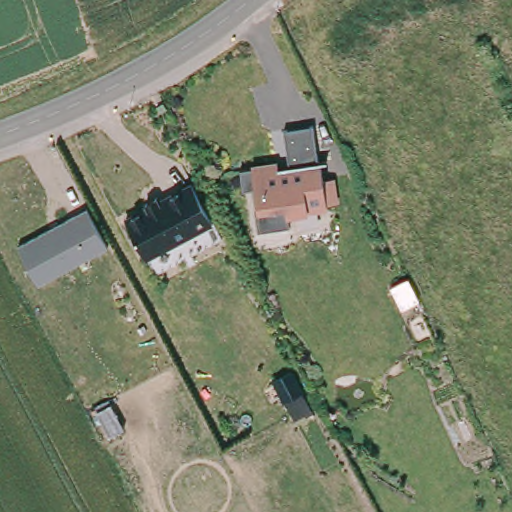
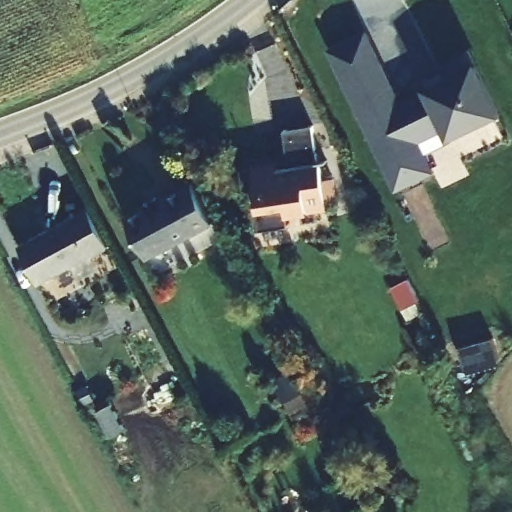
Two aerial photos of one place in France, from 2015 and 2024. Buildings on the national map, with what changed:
new [(403,99),(422,87),(476,60),(502,113),(449,139),(426,152),(436,171),(397,190),(327,50),(369,29),(403,99)]
unchanged [(310,125),(316,161),(318,161),(325,205),(286,211),(288,223),(259,227),(253,187),(241,190),(238,169),(275,163),(276,167),(286,165),(281,130),(310,125)]
unchanged [(208,214),(211,220),(144,256),(123,217),(146,205),(143,201),(154,195),(156,199),(190,181),(208,214)]
unchanged [(85,207),(105,245),(36,282),(16,245),(85,207)]
unchanged [(405,277),(415,298),(398,307),(387,285),(405,277)]
unchanged [(289,368),(301,391),(283,400),(271,377),(289,368)]
unchanged [(107,397),(122,427),(108,433),(93,405),(107,397)]

